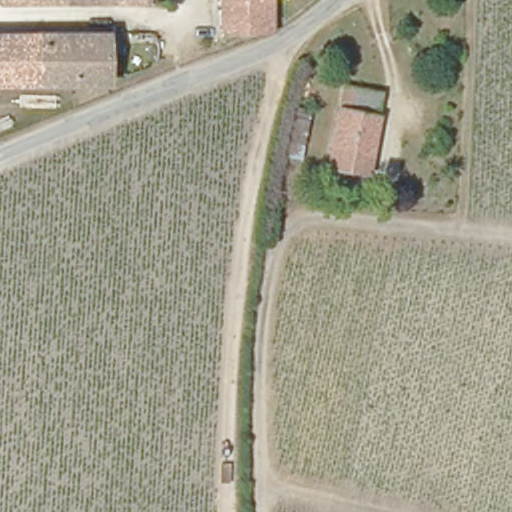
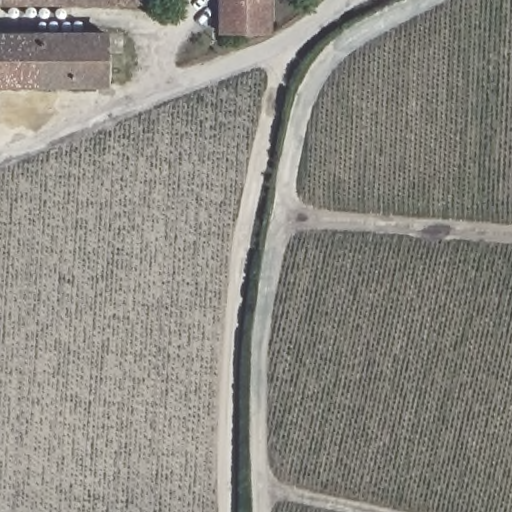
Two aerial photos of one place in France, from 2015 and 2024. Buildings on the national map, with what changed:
unchanged [(143,3),(2,6),(3,0),(143,0),(143,3)]
unchanged [(253,36),(212,34),(212,0),(272,0),(273,28),(253,36)]
unchanged [(99,87),(0,89),(0,35),(101,33),(99,87)]
demolished [(377,116),(363,179),(326,172),(339,109),(377,116)]

